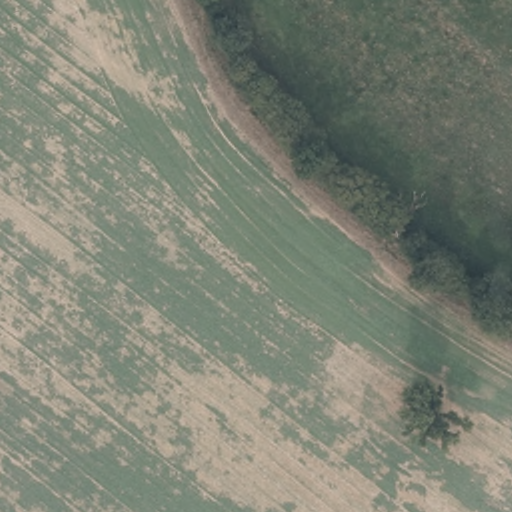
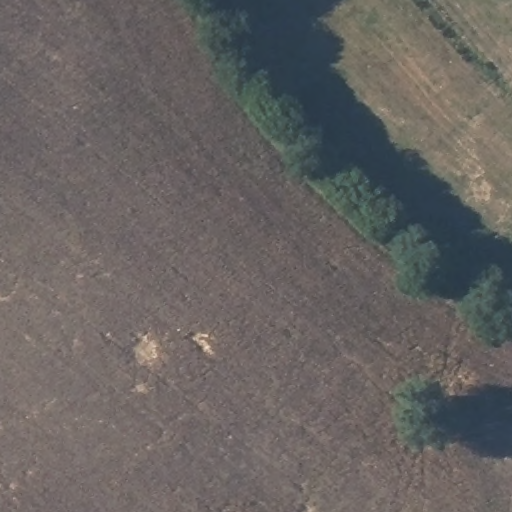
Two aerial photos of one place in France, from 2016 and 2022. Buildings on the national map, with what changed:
[]

